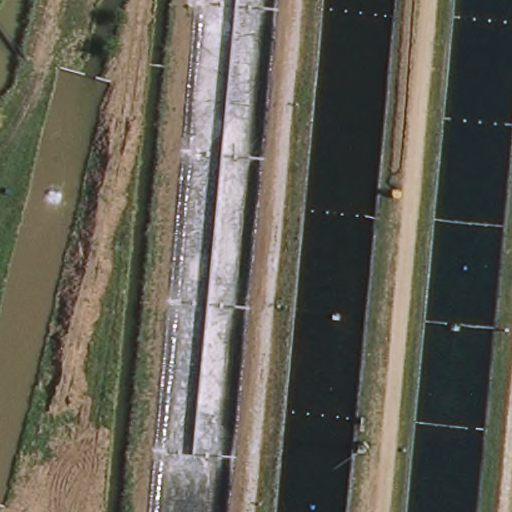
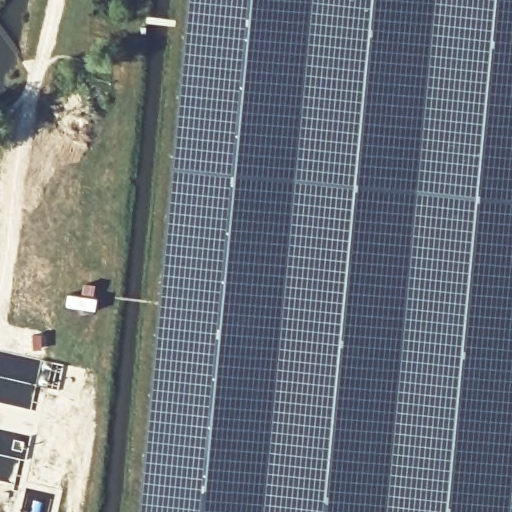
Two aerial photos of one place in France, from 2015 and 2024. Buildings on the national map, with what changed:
new [(188,0),(512,0),(512,512),(139,512),(188,0)]

